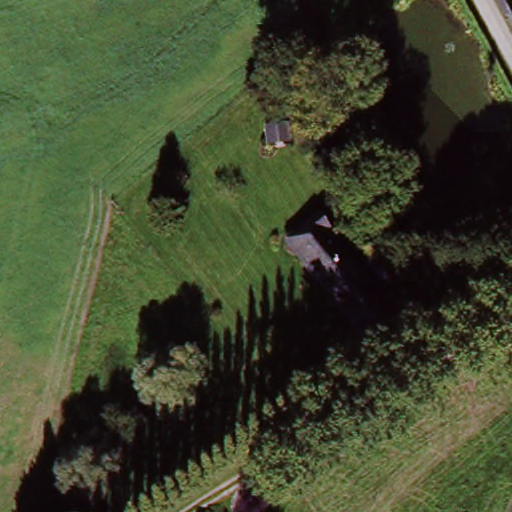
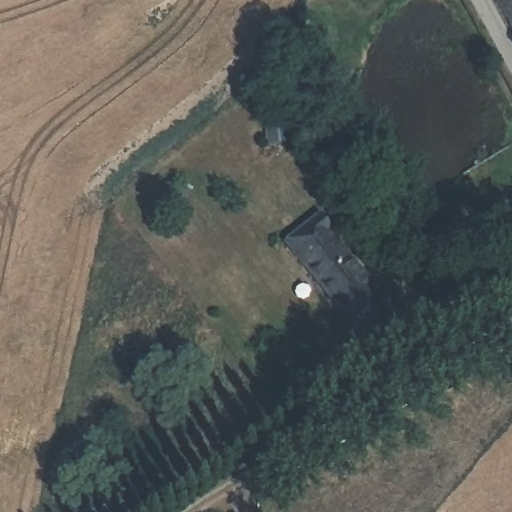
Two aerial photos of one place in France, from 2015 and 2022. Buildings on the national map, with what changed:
unchanged [(497,14),(490,0),(512,0),(512,46),(497,14)]
unchanged [(327,249),(390,327),(367,346),(288,250),(316,226),(332,245),(327,249)]

